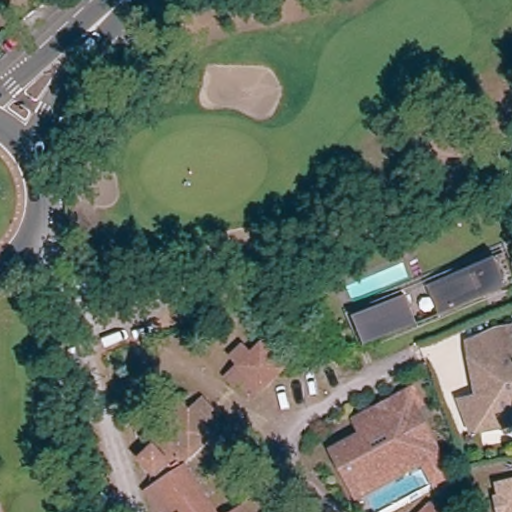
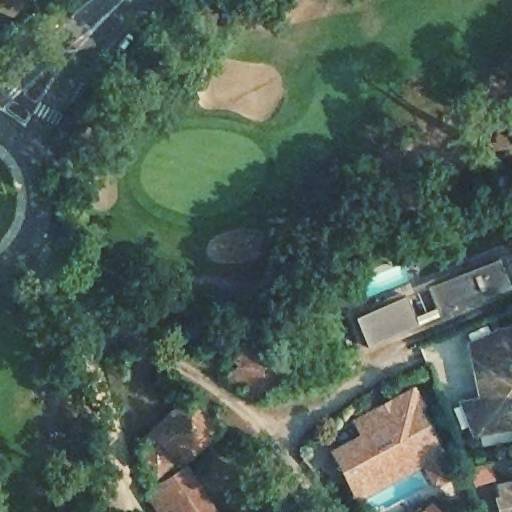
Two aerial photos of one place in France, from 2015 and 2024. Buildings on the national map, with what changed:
unchanged [(2,3),(0,4),(0,0),(2,0),(2,3)]
unchanged [(498,256),(511,284),(436,319),(423,291),(498,256)]
unchanged [(414,329),(363,352),(350,324),(401,301),(414,329)]
unchanged [(493,328),(512,324),(512,413),(505,414),(507,423),(471,430),(461,405),(479,398),(471,360),(467,341),(493,328)]
unchanged [(222,383),(234,371),(224,363),(239,347),(247,358),(269,338),(298,367),(250,408),(222,383)]
unchanged [(401,433),(410,451),(341,487),(322,450),(353,434),(346,421),(397,394),(414,427),(401,433)]
unchanged [(143,448),(180,415),(188,423),(202,411),(210,419),(207,422),(220,436),(181,471),(179,468),(171,473),(170,471),(151,485),(140,492),(132,479),(125,468),(135,461),(139,465),(151,457),(143,448)]
unchanged [(512,413),(512,422),(507,423),(505,414),(512,413)]
unchanged [(428,454),(345,497),(341,487),(410,451),(401,433),(414,427),(428,454)]
unchanged [(171,485),(184,477),(208,512),(153,512),(146,502),(171,485)]
unchanged [(497,510),(493,495),(501,494),(498,481),(512,478),(512,512),(505,512),(504,509),(497,510)]

